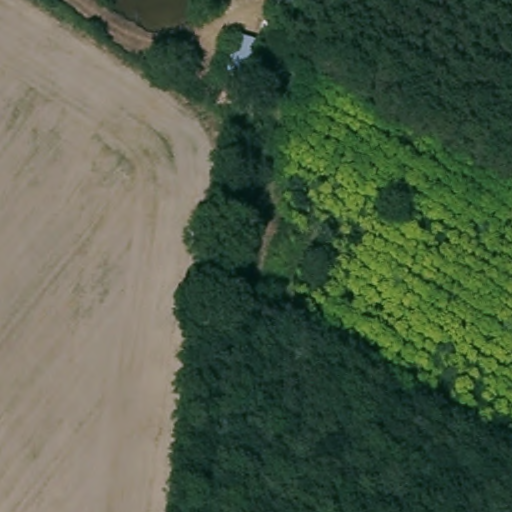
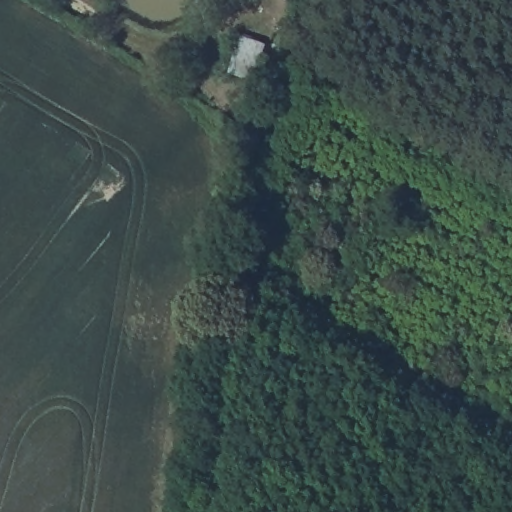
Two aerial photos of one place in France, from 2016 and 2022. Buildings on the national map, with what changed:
unchanged [(264,44),(253,84),(225,76),(237,37),(264,44)]

